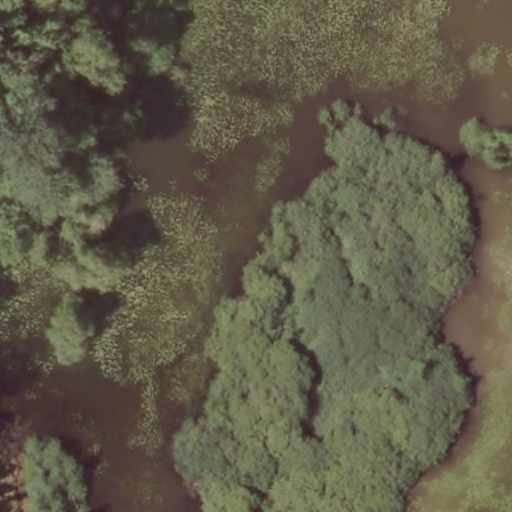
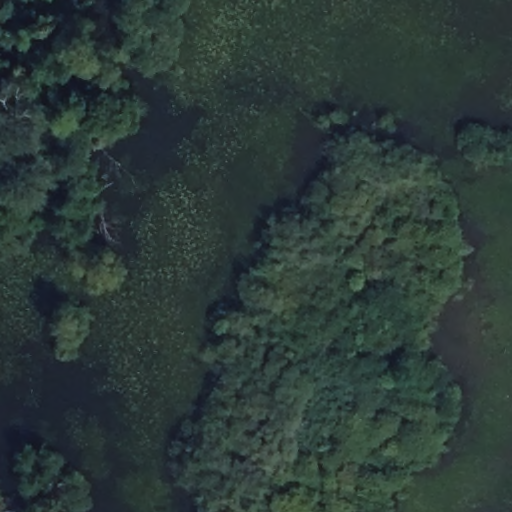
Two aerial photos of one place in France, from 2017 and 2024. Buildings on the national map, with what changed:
unchanged [(85,214),(72,211),(75,198),(87,202),(85,214)]

